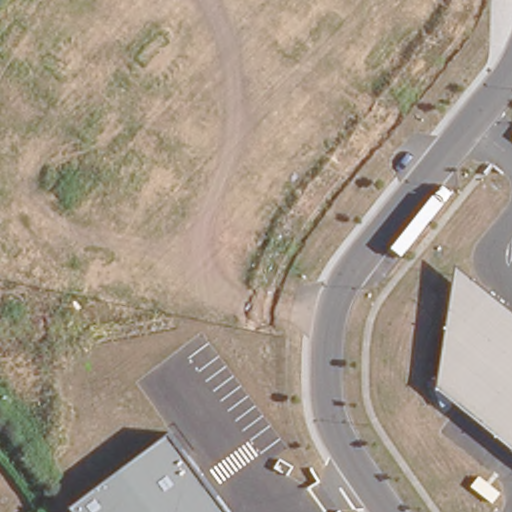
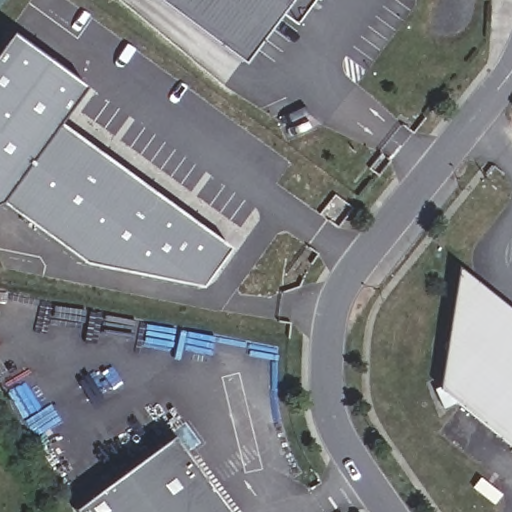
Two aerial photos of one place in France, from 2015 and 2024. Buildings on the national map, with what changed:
new [(293,21),(277,8),(241,60),(162,0),(309,0),(293,21)]
new [(84,83),(57,119),(228,244),(199,284),(82,261),(0,201),(0,40),(9,28),(84,83)]
unchanged [(440,388),(458,268),(512,310),(512,444),(440,388)]
unchanged [(171,432),(229,512),(77,512),(72,506),(171,432)]

